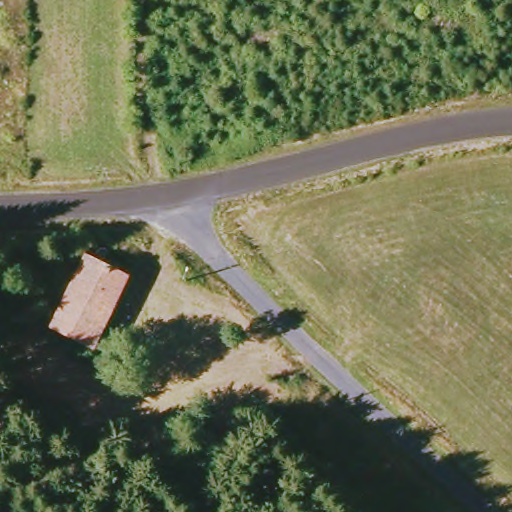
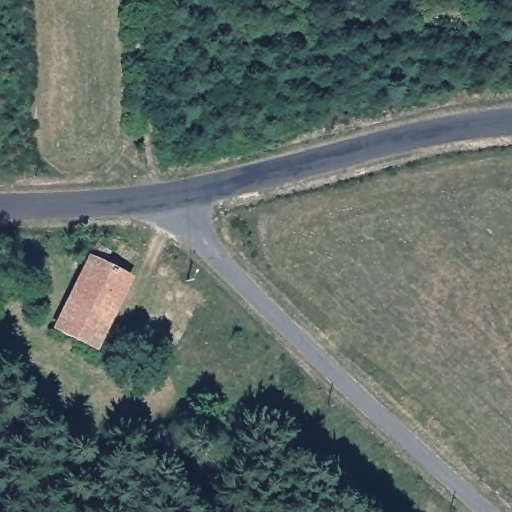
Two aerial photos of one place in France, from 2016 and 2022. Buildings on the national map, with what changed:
unchanged [(102,361),(63,345),(97,249),(111,254),(107,268),(132,277),(102,361)]

